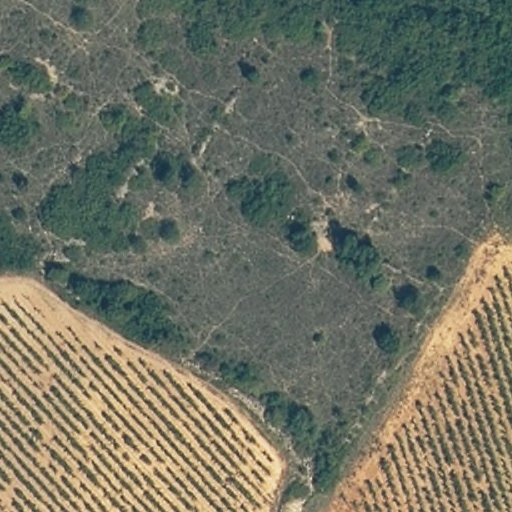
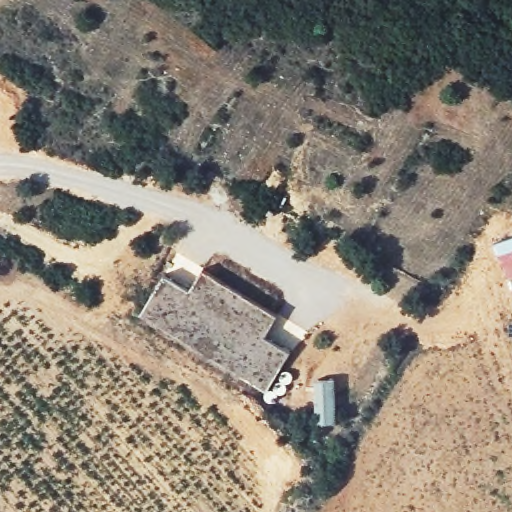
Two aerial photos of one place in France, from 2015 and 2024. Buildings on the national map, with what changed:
new [(162,274),(189,289),(201,269),(229,284),(279,315),(266,336),(292,351),(265,392),(137,316),(162,274)]
new [(334,379),(337,424),(315,424),(314,381),(334,379)]

